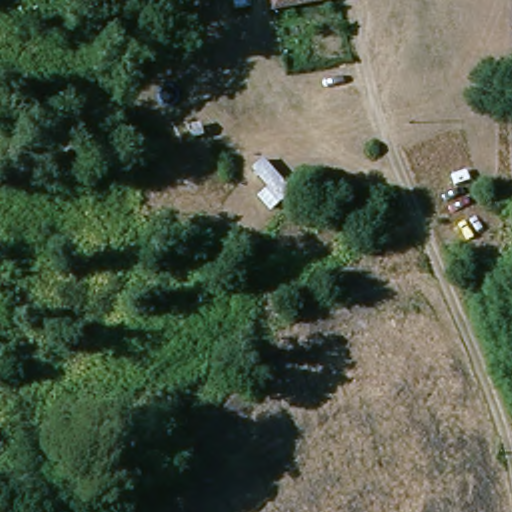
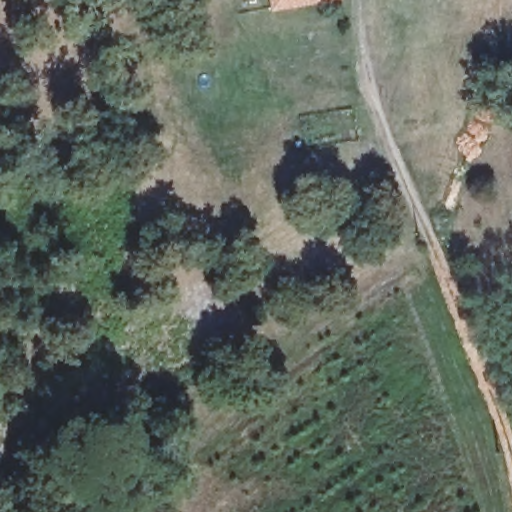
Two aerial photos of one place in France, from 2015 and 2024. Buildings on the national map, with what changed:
unchanged [(276,11),(274,0),(339,0),(276,11)]
unchanged [(216,142),(196,144),(191,118),(211,114),(216,142)]

